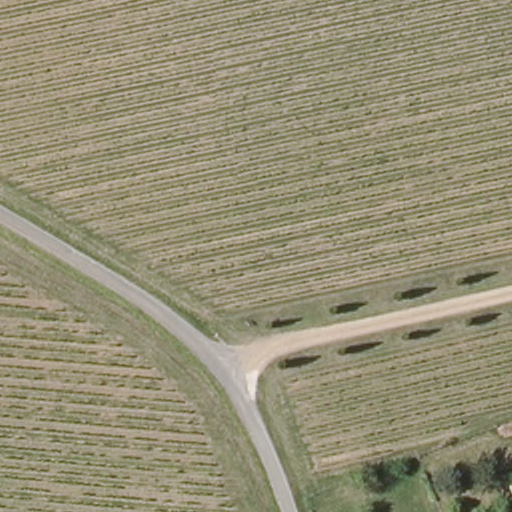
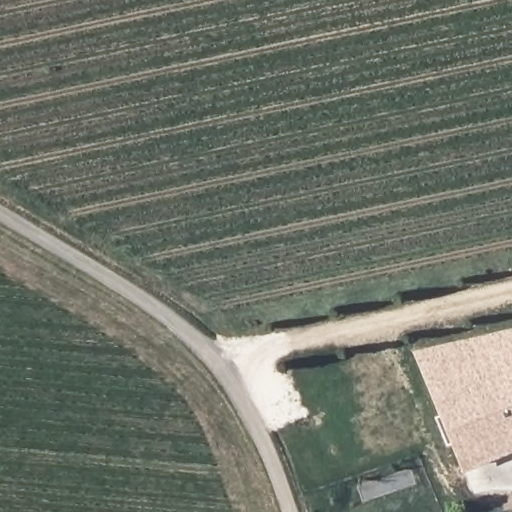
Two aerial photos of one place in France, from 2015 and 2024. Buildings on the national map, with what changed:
new [(463,472),(413,351),(512,327),(512,451),(463,472)]

